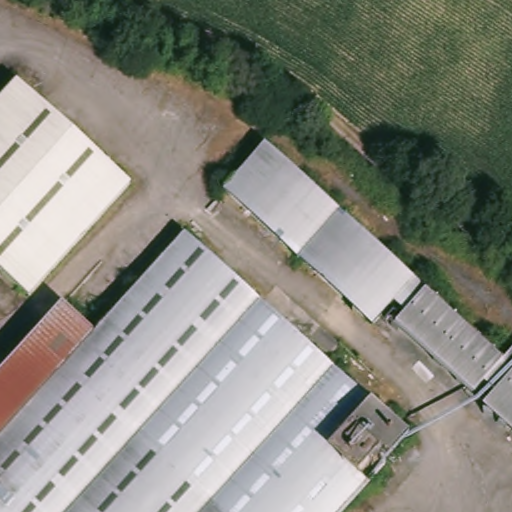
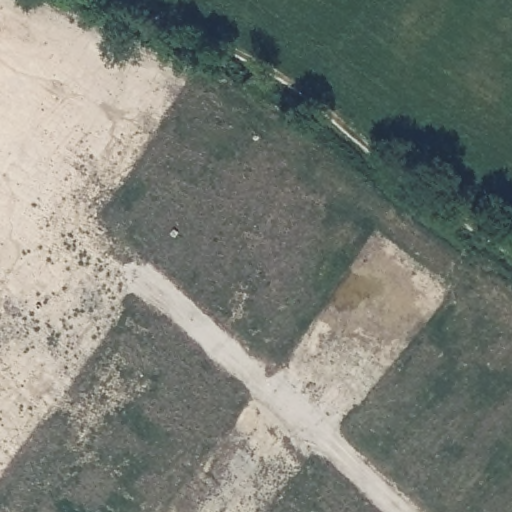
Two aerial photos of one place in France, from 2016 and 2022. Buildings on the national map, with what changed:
demolished [(507,362),(512,357),(512,426),(487,404),(497,394),(486,384),(476,394),(398,324),(408,313),(395,301),(374,325),(222,187),(263,142),(507,362)]
demolished [(182,228),(408,432),(335,512),(0,512),(0,432),(92,328),(95,326),(182,228)]
demolished [(95,326),(92,328),(0,432),(0,375),(66,302),(95,326)]

